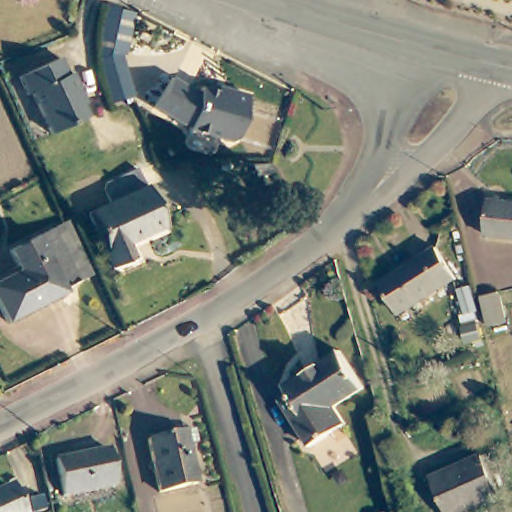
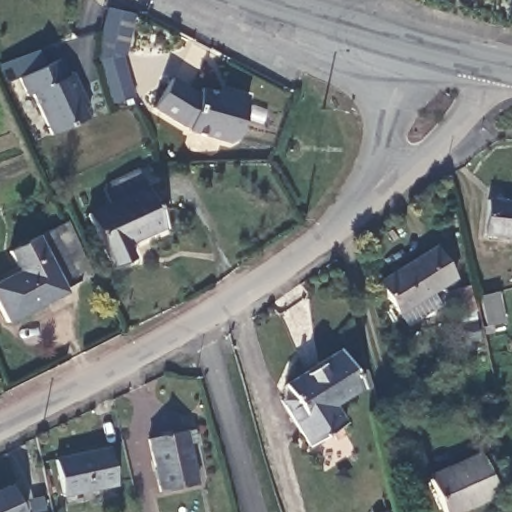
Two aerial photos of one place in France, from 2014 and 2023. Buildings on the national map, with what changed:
unchanged [(96,65),(96,60),(106,14),(133,16),(125,55),(120,60),(131,104),(111,111),(96,65)]
unchanged [(63,75),(68,72),(78,92),(73,95),(83,116),(46,132),(28,91),(22,94),(14,76),(55,57),(63,75)]
unchanged [(182,125),(155,106),(173,77),(200,91),(201,85),(229,94),(231,89),(249,94),(238,135),(231,141),(190,130),(190,125),(182,125)]
unchanged [(469,170),(463,162),(472,156),(477,165),(469,170)]
unchanged [(111,273),(86,219),(108,210),(100,196),(104,185),(136,171),(163,232),(125,249),(131,265),(111,273)]
unchanged [(481,237),(486,203),(512,207),(512,242),(481,237)]
unchanged [(60,211),(91,280),(78,286),(51,233),(43,237),(36,223),(60,211)]
unchanged [(64,297),(6,327),(0,317),(0,285),(17,276),(6,255),(43,237),(51,233),(78,286),(63,295),(64,297)]
unchanged [(397,316),(377,282),(431,250),(451,283),(397,316)]
unchanged [(482,328),(475,301),(495,295),(502,323),(482,328)]
unchanged [(296,401),(287,387),(341,354),(363,390),(337,406),(348,425),(313,447),(288,406),(296,401)]
unchanged [(157,494),(146,441),(184,434),(193,432),(196,446),(187,447),(195,486),(157,494)]
unchanged [(63,496),(56,461),(106,451),(113,486),(63,496)]
unchanged [(480,460),(497,502),(473,512),(442,512),(429,481),(480,460)]
unchanged [(13,512),(0,512),(0,493),(6,491),(13,512)]

